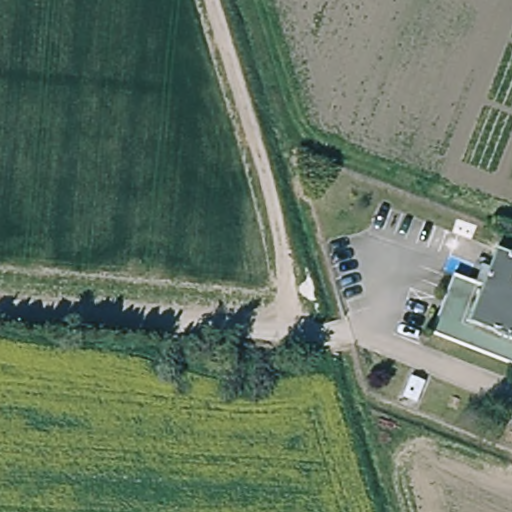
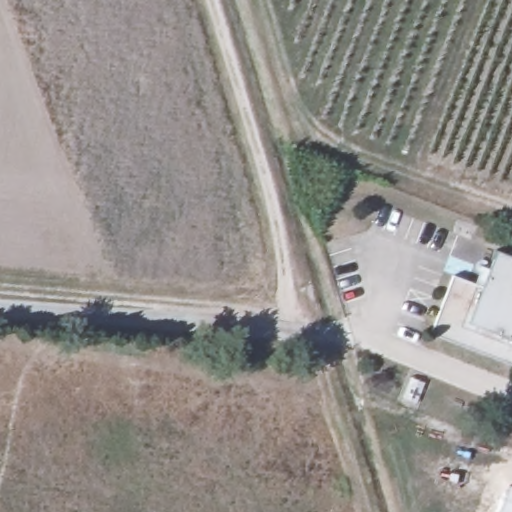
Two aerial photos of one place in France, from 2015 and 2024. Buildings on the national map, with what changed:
unchanged [(455,278),(485,289),(502,249),(512,253),(512,338),(444,308),(455,278)]
unchanged [(433,334),(444,308),(512,338),(512,364),(433,334)]
new [(511,486),(512,487),(512,512),(501,512),(511,486)]

